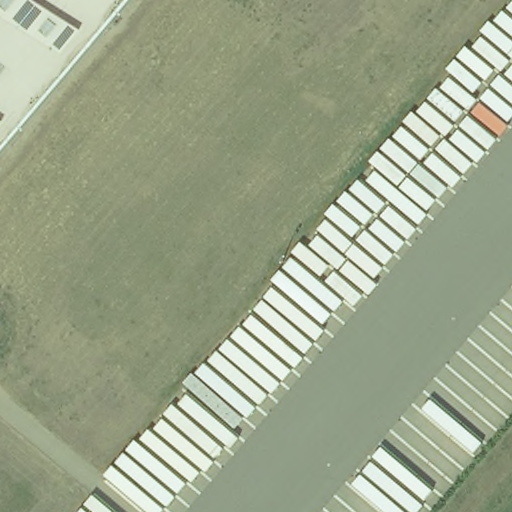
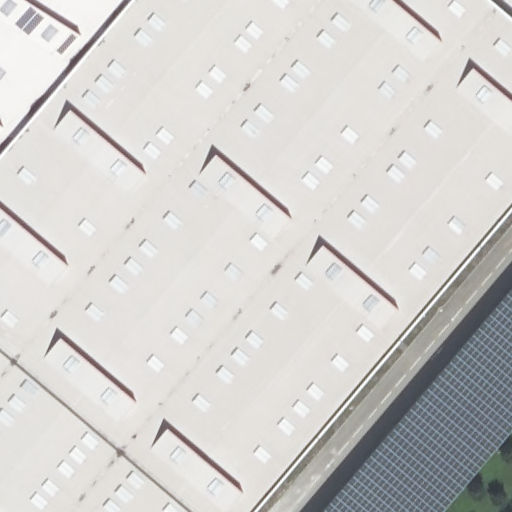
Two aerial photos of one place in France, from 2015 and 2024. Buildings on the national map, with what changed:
unchanged [(0,162),(0,0),(138,0),(0,162)]
new [(512,204),(252,512),(0,512),(0,162),(33,124),(138,0),(512,0),(512,204)]

